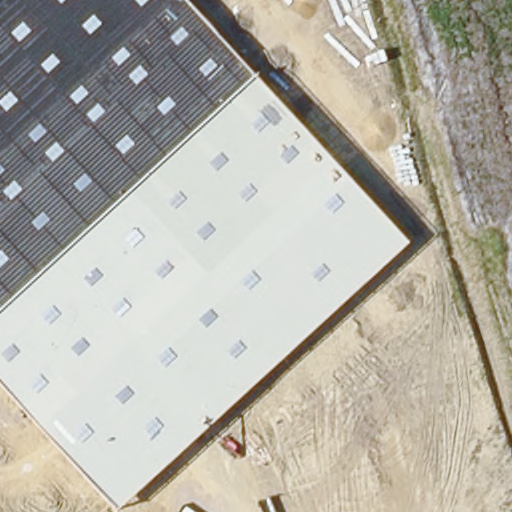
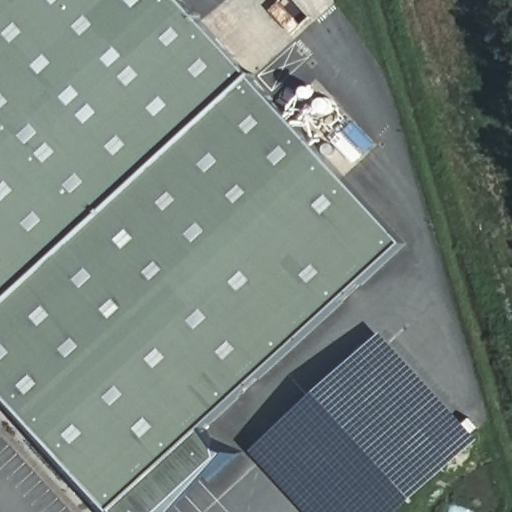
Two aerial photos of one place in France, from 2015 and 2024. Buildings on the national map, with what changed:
unchanged [(254,77),(407,244),(114,511),(0,387),(0,0),(183,0),(254,77)]
new [(401,512),(310,512),(254,450),(383,333),(482,439),(401,512)]
new [(230,452),(175,512),(115,512),(114,511),(205,428),(220,450),(230,452)]

